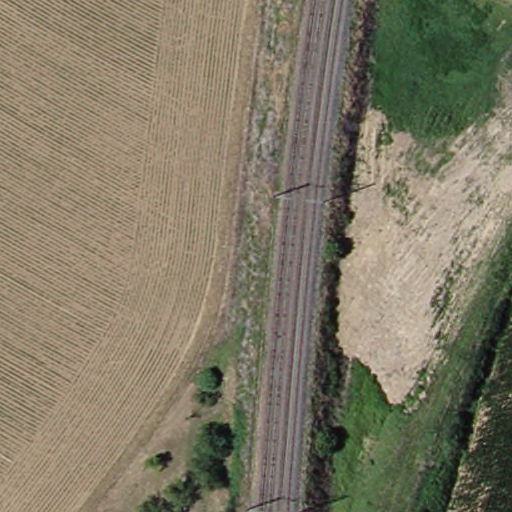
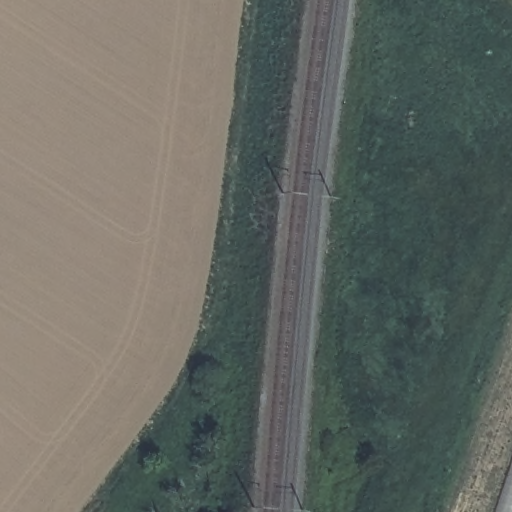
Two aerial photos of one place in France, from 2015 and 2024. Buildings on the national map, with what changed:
new [(512,512),(495,512),(512,460),(512,512)]

